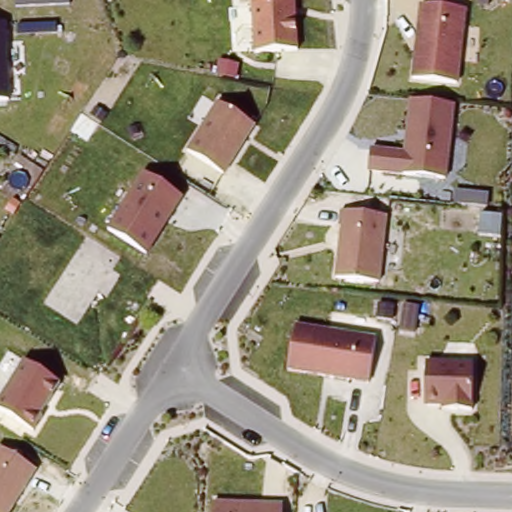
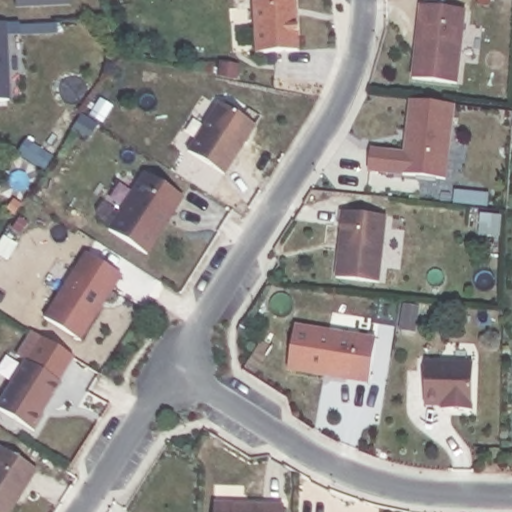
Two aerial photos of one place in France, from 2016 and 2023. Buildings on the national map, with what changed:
unchanged [(16,5),(16,0),(69,0),(70,2),(16,5)]
unchanged [(257,56),(252,0),(295,0),(298,53),(257,56)]
unchanged [(465,8),(457,85),(412,78),(420,3),(465,8)]
unchanged [(10,98),(0,99),(0,21),(5,21),(10,98)]
unchanged [(255,126),(222,173),(186,146),(218,98),(255,126)]
unchanged [(455,103),(447,179),(367,170),(368,144),(403,148),(409,98),(455,103)]
unchanged [(185,196),(147,255),(125,243),(105,228),(142,170),(185,196)]
unchanged [(387,213),(380,281),(333,275),(339,208),(387,213)]
new [(85,253),(121,275),(80,341),(44,318),(85,253)]
unchanged [(375,336),(367,382),(288,370),(293,325),(375,336)]
unchanged [(27,428),(0,408),(0,392),(23,357),(60,381),(27,428)]
unchanged [(473,360),(472,408),(455,415),(442,406),(423,405),(425,359),(473,360)]
unchanged [(10,512),(0,512),(0,441),(0,440),(40,465),(10,512)]
unchanged [(282,512),(212,512),(212,500),(282,502),(282,512)]

